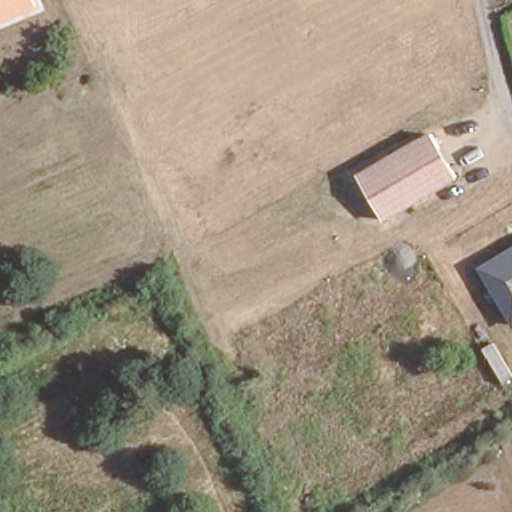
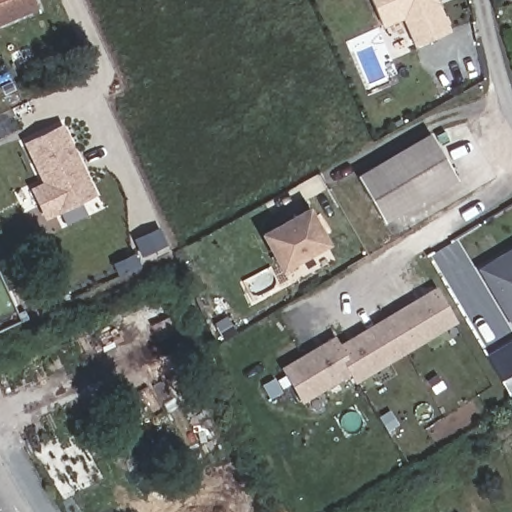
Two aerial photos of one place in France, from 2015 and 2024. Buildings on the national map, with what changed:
unchanged [(0,23),(0,0),(33,0),(36,8),(0,23)]
new [(384,25),(373,0),(438,0),(452,29),(414,46),(403,18),(384,25)]
new [(62,123),(95,194),(45,218),(30,187),(43,180),(23,142),(62,123)]
unchanged [(386,222),(358,174),(431,131),(459,180),(386,222)]
new [(308,204),(329,243),(281,270),(259,232),(308,204)]
unchanged [(478,268),(512,248),(512,326),(478,268)]
new [(335,340),(340,349),(438,291),(456,323),(359,381),(353,372),(305,400),(286,369),(335,340)]

